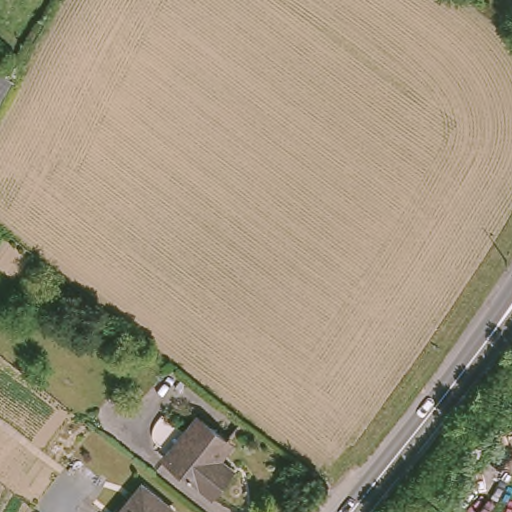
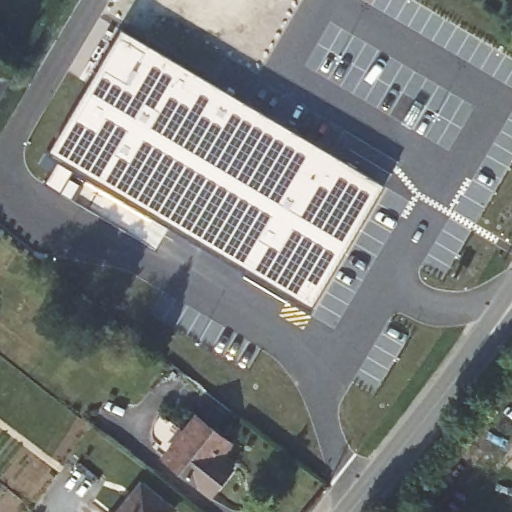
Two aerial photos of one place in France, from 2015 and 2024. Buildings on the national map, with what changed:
new [(151,0),(264,0),(234,52),(151,0)]
new [(307,316),(49,154),(126,25),(382,183),(307,316)]
unchanged [(0,104),(0,66),(16,77),(0,104)]
unchanged [(216,495),(168,458),(201,417),(231,440),(220,456),(236,469),(216,495)]
unchanged [(141,485),(171,508),(174,510),(172,512),(119,512),(141,485)]

